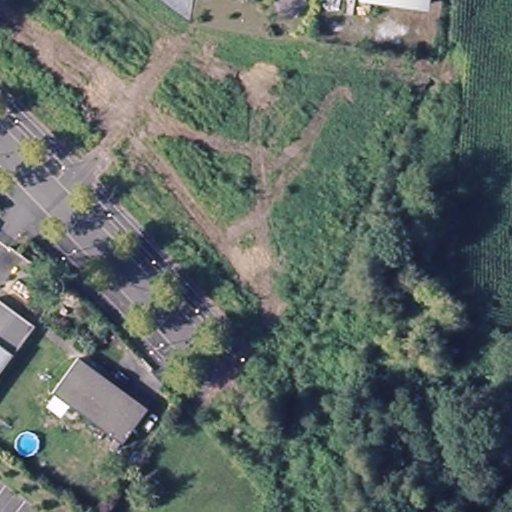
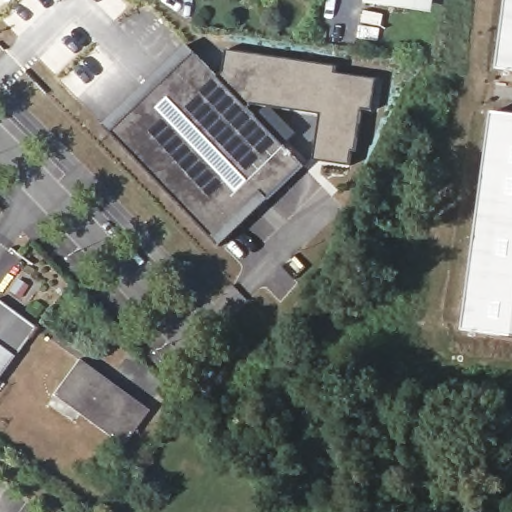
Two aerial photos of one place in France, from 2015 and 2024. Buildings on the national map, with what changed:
unchanged [(381,3),(365,0),(428,0),(427,9),(381,3)]
new [(512,0),(512,72),(498,70),(507,0),(512,0)]
new [(225,73),(227,51),(336,66),(335,73),(377,79),(372,111),(361,109),(356,152),(352,151),(350,166),(314,160),(321,114),(272,106),(297,133),(280,149),(252,120),(268,106),(252,105),(244,111),(215,81),(225,73)]
new [(187,53),(298,168),(217,246),(107,131),(187,53)]
new [(493,111),(512,113),(512,337),(464,331),(475,238),(493,111)]
unchanged [(36,326),(0,374),(0,300),(36,326)]
unchanged [(149,409),(124,444),(53,392),(79,357),(149,409)]

